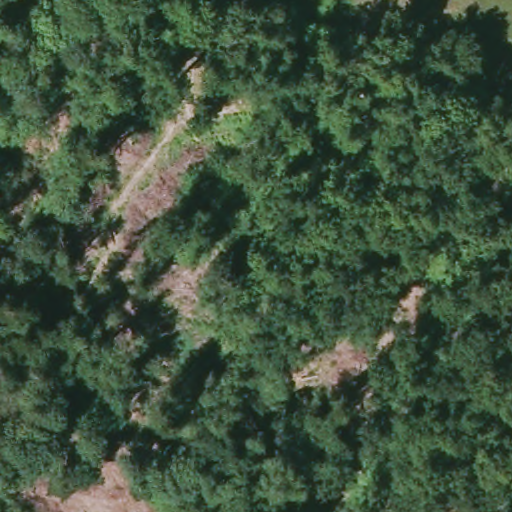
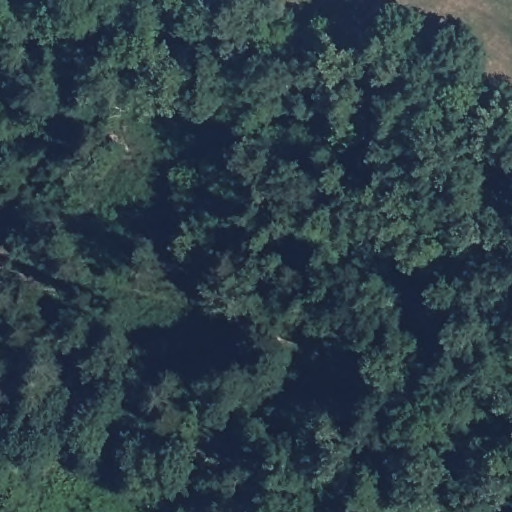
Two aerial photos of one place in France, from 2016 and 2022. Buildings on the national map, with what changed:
[]

